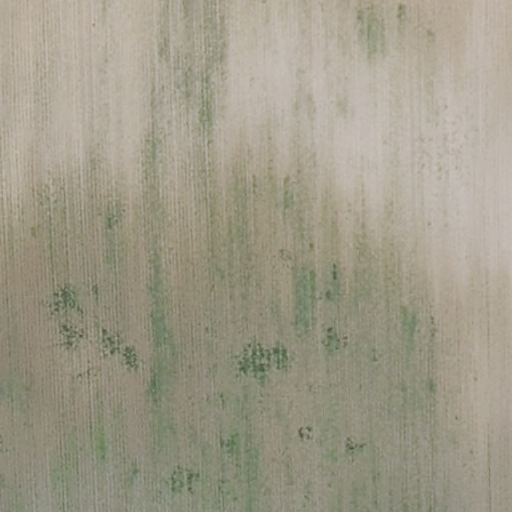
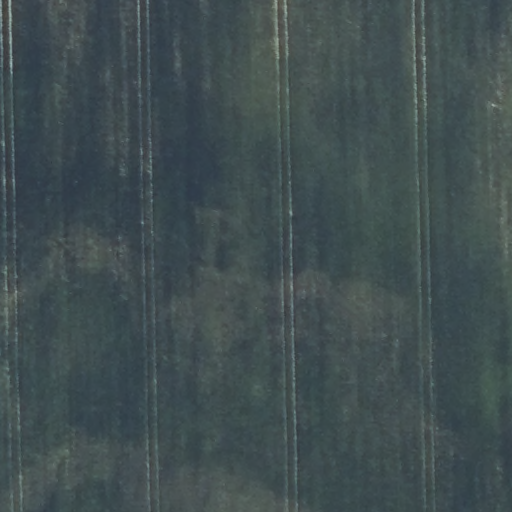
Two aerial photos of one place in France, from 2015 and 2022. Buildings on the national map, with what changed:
[]

